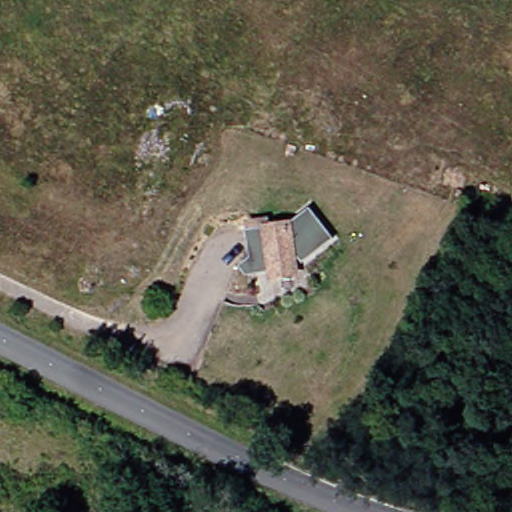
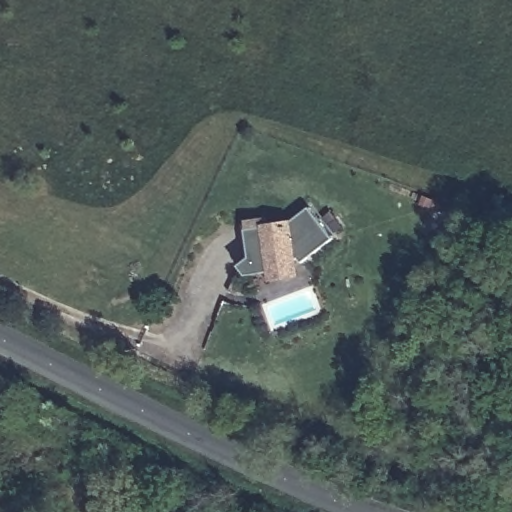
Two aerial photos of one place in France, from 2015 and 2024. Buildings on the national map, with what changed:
unchanged [(320,236),(275,266),(244,272),(237,261),(246,255),(237,235),(302,203),(320,236)]

